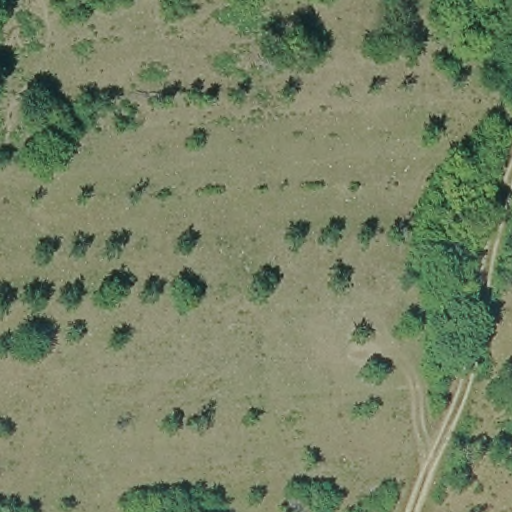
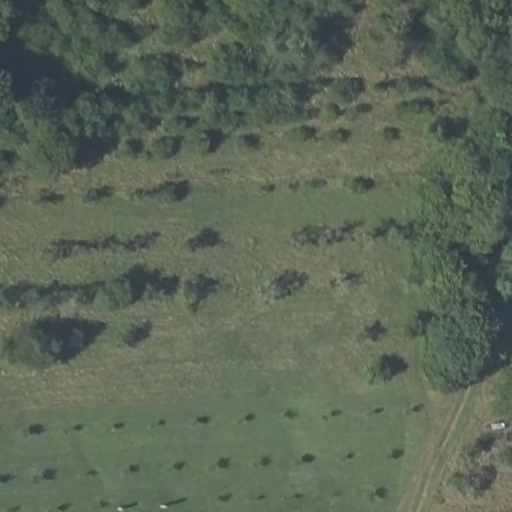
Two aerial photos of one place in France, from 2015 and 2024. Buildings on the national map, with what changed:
[]

